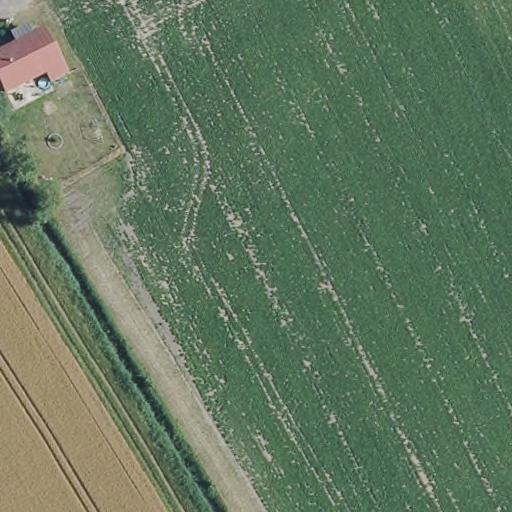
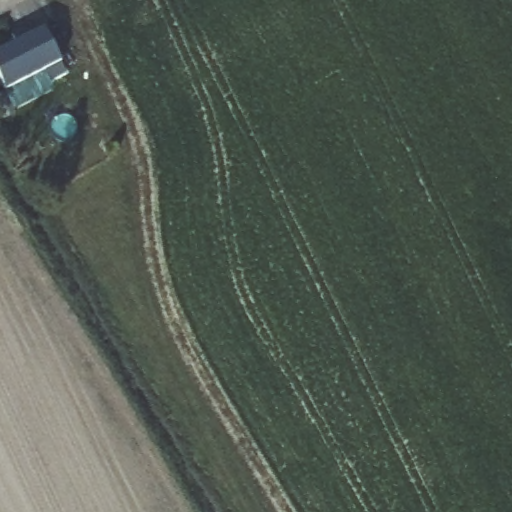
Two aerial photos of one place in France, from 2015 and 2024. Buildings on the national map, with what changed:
unchanged [(40,77),(0,96),(0,53),(11,47),(7,37),(17,32),(24,41),(35,36),(59,80),(47,86),(40,77)]
unchanged [(48,106),(75,89),(85,101),(55,118),(48,106)]

